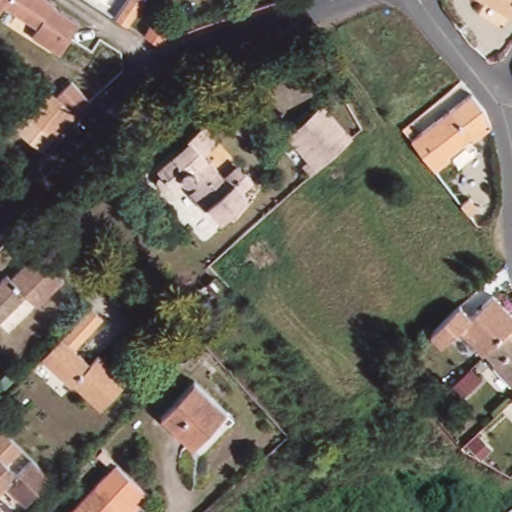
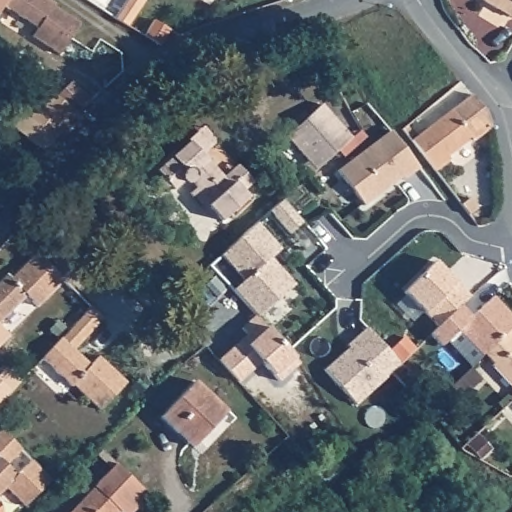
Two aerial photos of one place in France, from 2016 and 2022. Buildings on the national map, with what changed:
unchanged [(55,2),(54,5),(79,21),(59,53),(32,35),(36,28),(2,5),(0,8),(0,0),(52,0),(55,2)]
unchanged [(114,20),(106,15),(101,12),(110,0),(128,0),(114,20)]
unchanged [(506,18),(474,0),(512,0),(512,16),(508,14),(506,18)]
unchanged [(147,41),(135,34),(145,19),(157,25),(147,41)]
unchanged [(43,142),(16,121),(36,95),(51,107),(62,116),(66,119),(43,142)]
unchanged [(414,147),(473,101),(476,105),(480,110),(484,114),(486,117),(490,123),(495,131),(495,132),(475,147),(473,145),(450,163),(451,165),(436,177),(413,147),(414,147)]
unchanged [(315,176),(307,167),(313,161),(290,138),(325,105),(356,137),(315,176)]
new [(389,129),(418,166),(402,177),(400,174),(362,203),(336,169),(389,129)]
unchanged [(202,190),(191,179),(177,192),(175,190),(172,192),(170,193),(167,194),(164,193),(161,191),(160,189),(160,186),(159,183),(160,181),(161,179),(162,177),(159,173),(191,145),(206,131),(219,144),(205,158),(227,182),(242,168),(249,175),(258,185),(248,194),(253,200),(226,224),(212,209),(207,213),(194,198),(202,190)]
new [(256,315),(234,290),(245,278),(222,253),(258,221),(280,247),(270,257),(295,283),(256,315)]
unchanged [(40,311),(29,300),(0,329),(0,288),(9,279),(14,284),(40,258),(66,285),(40,311)]
new [(425,311),(404,289),(436,259),(456,280),(471,294),(458,307),(454,312),(440,326),(425,311)]
unchanged [(487,353),(484,356),(481,358),(456,331),(440,347),(429,336),(454,312),(458,307),(470,320),(492,298),(512,319),(512,330),(495,345),(487,353)]
unchanged [(130,387),(104,415),(76,389),(75,391),(45,362),(93,311),(105,323),(76,354),(93,370),(101,361),(130,387)]
new [(400,363),(357,403),(325,368),(350,347),(347,344),(367,327),(400,363)]
unchanged [(178,338),(169,347),(160,338),(169,329),(178,338)]
unchanged [(493,366),(484,356),(487,353),(495,345),(512,330),(512,342),(512,390),(492,368),(493,366)]
unchanged [(233,424),(203,454),(164,417),(195,386),(233,424)]
unchanged [(23,511),(4,492),(0,496),(0,434),(20,454),(5,469),(15,480),(30,465),(50,484),(23,511)]
unchanged [(147,493),(130,512),(122,512),(119,510),(117,512),(68,512),(115,462),(147,493)]

